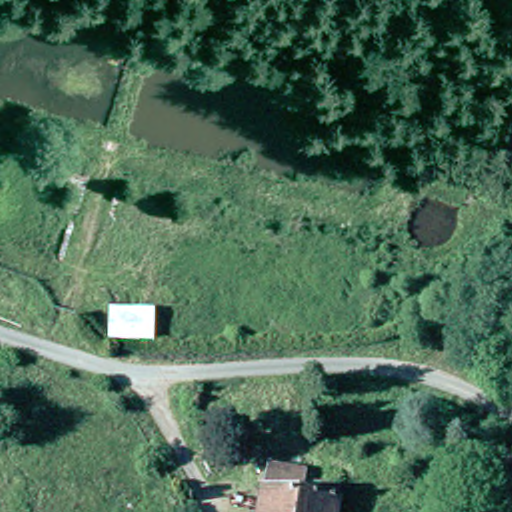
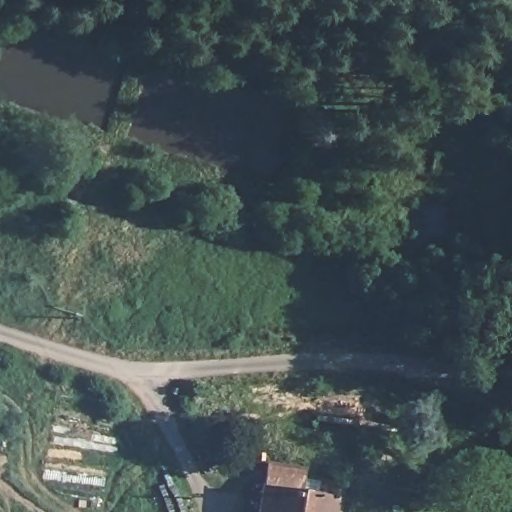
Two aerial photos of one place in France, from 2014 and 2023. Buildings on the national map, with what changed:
demolished [(102,336),(102,301),(154,302),(153,335),(102,336)]
unchanged [(258,482),(298,490),(313,492),(333,496),(330,512),(254,512),(258,482)]

